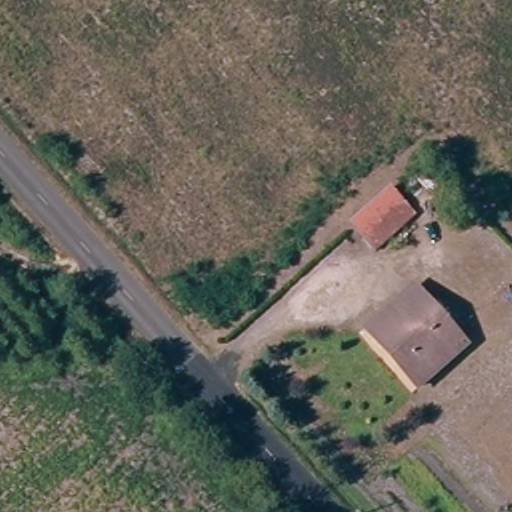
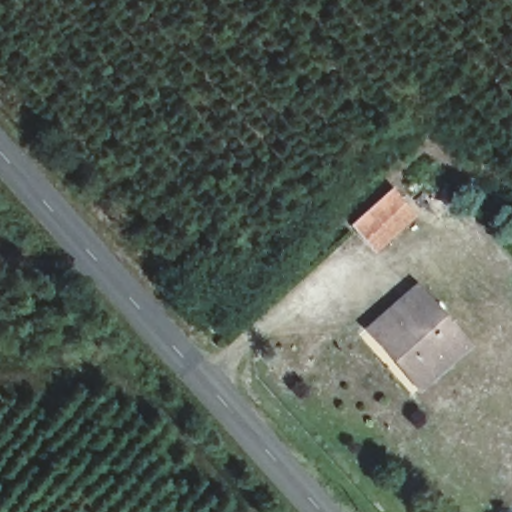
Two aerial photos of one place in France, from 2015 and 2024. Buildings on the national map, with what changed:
unchanged [(345,223),(392,187),(415,221),(370,255),(345,223)]
unchanged [(435,322),(445,313),(473,342),(421,388),(366,331),(406,292),(435,322)]

